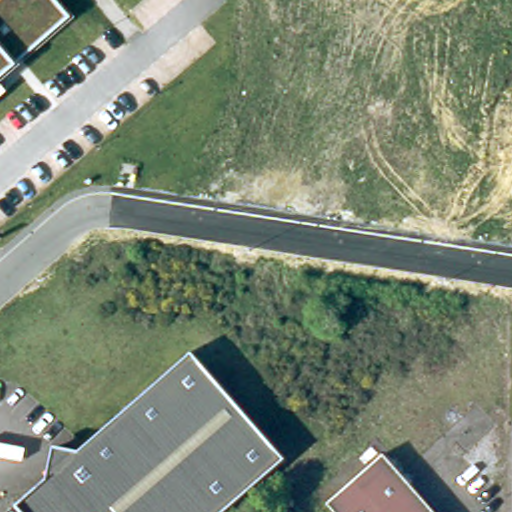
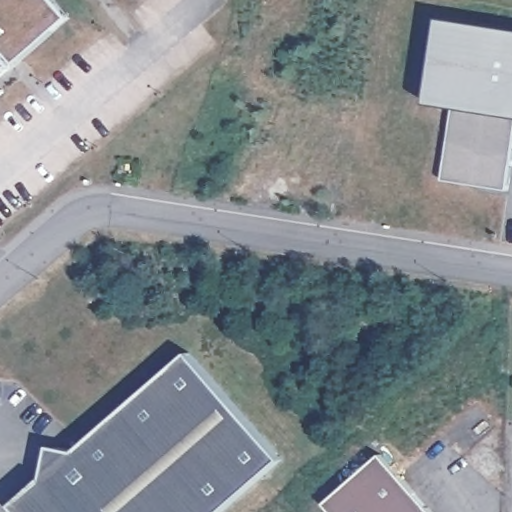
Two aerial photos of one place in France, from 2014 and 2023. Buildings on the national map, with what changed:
unchanged [(0,80),(0,0),(55,0),(71,18),(0,80)]
new [(442,18),(512,28),(512,115),(454,106),(429,103),(442,18)]
unchanged [(0,96),(0,87),(4,92),(0,96)]
new [(509,191),(443,182),(454,106),(512,115),(512,168),(509,191)]
unchanged [(13,505),(53,470),(58,446),(74,451),(189,353),(281,455),(217,512),(19,512),(13,505)]
unchanged [(429,512),(329,512),(321,503),(376,453),(429,512)]

